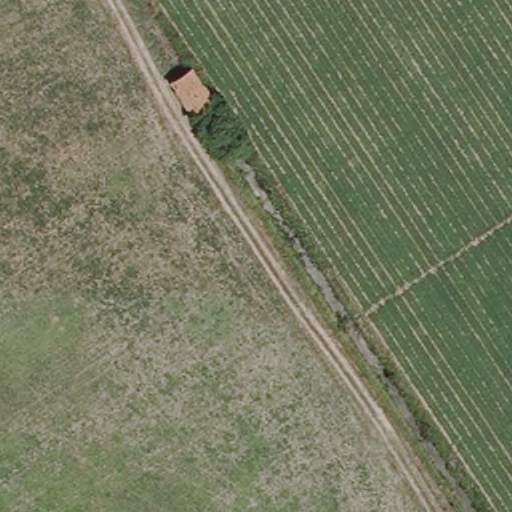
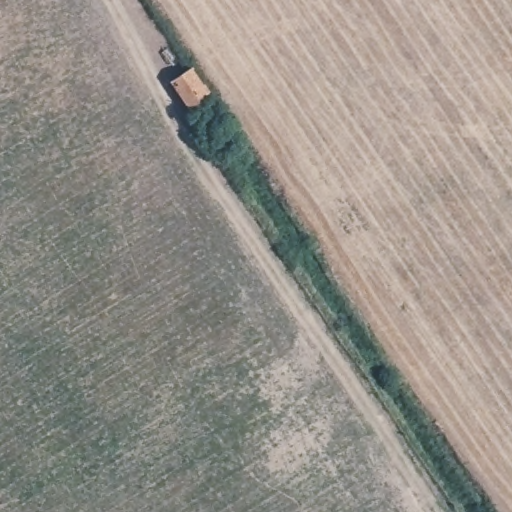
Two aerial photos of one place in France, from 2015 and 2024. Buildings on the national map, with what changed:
unchanged [(222,94),(195,112),(173,79),(200,61),(222,94)]

